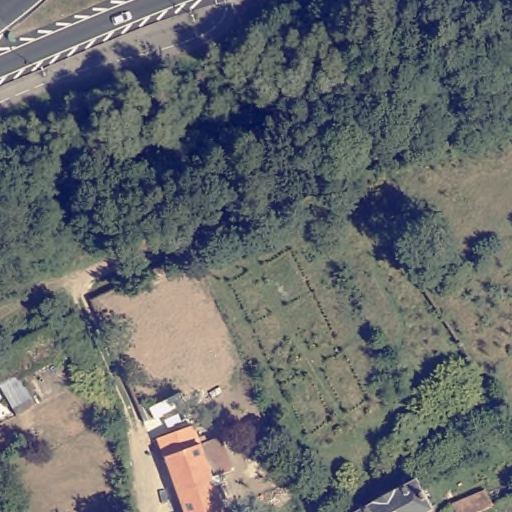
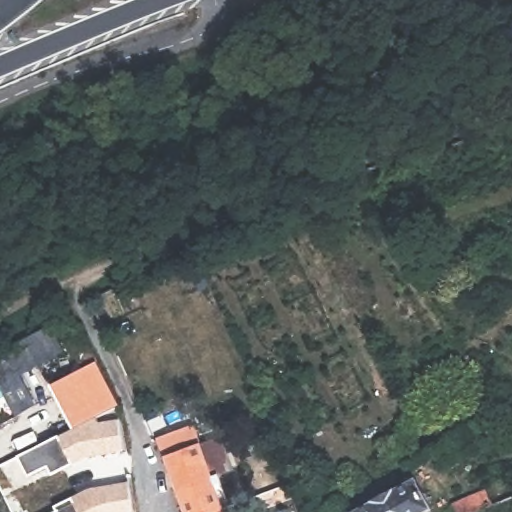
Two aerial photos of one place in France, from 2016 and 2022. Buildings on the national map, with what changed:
demolished [(109,382),(92,394),(54,324),(72,314),(109,382)]
unchanged [(18,381),(33,409),(14,419),(0,394),(0,352),(48,327),(63,358),(18,381)]
new [(95,361),(117,406),(101,414),(73,428),(50,385),(95,361)]
new [(101,414),(103,422),(122,419),(126,450),(87,456),(51,474),(47,466),(28,476),(18,456),(101,414)]
unchanged [(158,428),(149,431),(145,425),(155,421),(158,428)]
unchanged [(205,452),(217,447),(226,444),(239,476),(218,485),(227,512),(189,512),(164,447),(163,443),(197,431),(205,452)]
unchanged [(373,502),(394,491),(395,492),(416,481),(431,510),(432,512),(359,512),(374,504),(373,502)]
new [(55,507),(91,488),(131,482),(136,512),(135,512),(55,512),(57,511),(55,507)]
unchanged [(486,490),(493,506),(477,512),(456,512),(452,504),(486,490)]

